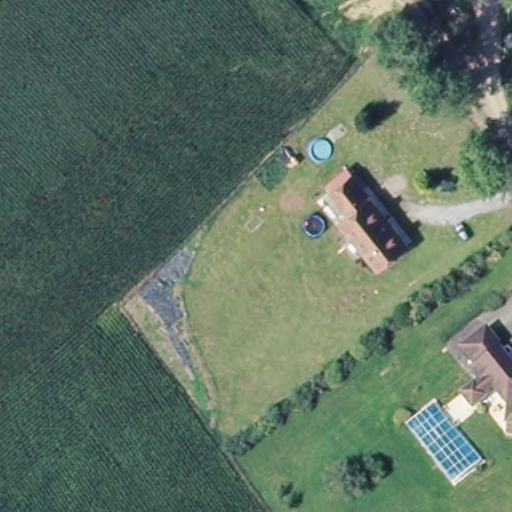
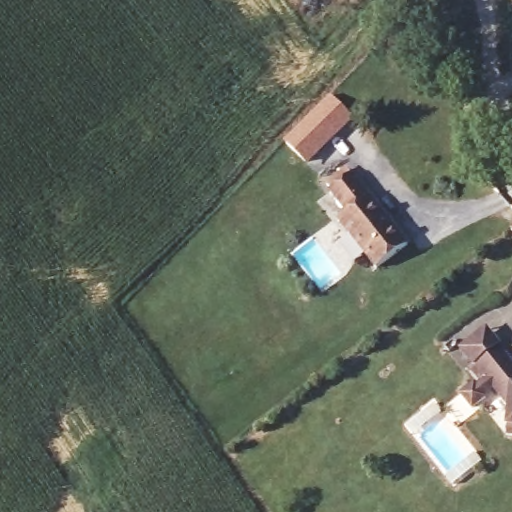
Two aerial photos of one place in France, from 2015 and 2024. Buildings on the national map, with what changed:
new [(331,100),(352,121),(308,166),(287,145),(331,100)]
unchanged [(378,274),(336,224),(348,214),(342,205),(334,196),(354,178),(362,188),(409,247),(378,274)]
unchanged [(504,419),(506,403),(483,376),(477,382),(464,365),(470,361),(457,346),(483,328),(494,343),(512,365),(512,420),(504,419)]
unchanged [(480,394),(465,405),(455,391),(469,382),(480,394)]

